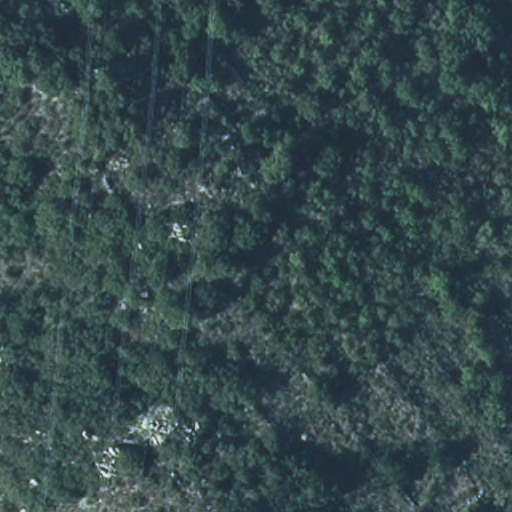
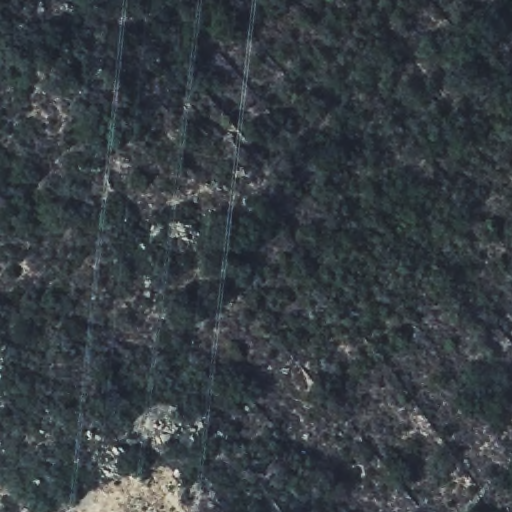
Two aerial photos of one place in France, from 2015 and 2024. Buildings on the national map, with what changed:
unchanged [(33,484),(35,479),(46,483),(43,491),(42,495),(32,489),(33,484)]

